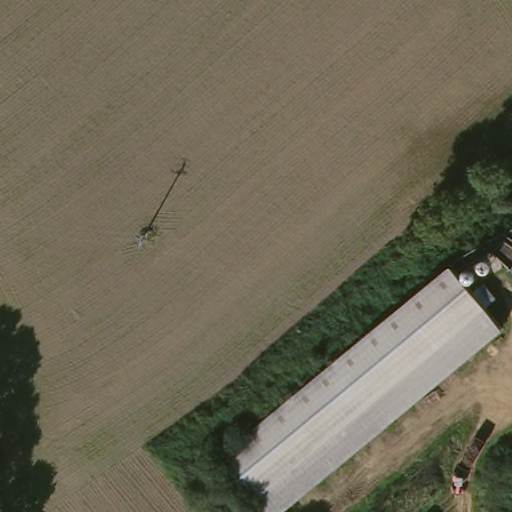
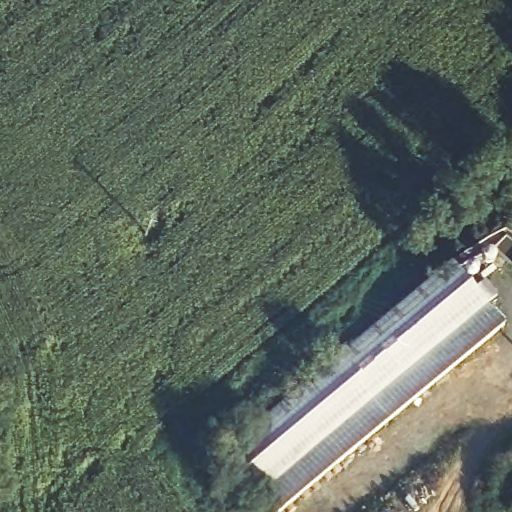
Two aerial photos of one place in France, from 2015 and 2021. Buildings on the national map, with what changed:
unchanged [(512,323),(512,332),(283,512),(273,512),(222,449),(457,261),(512,323)]

